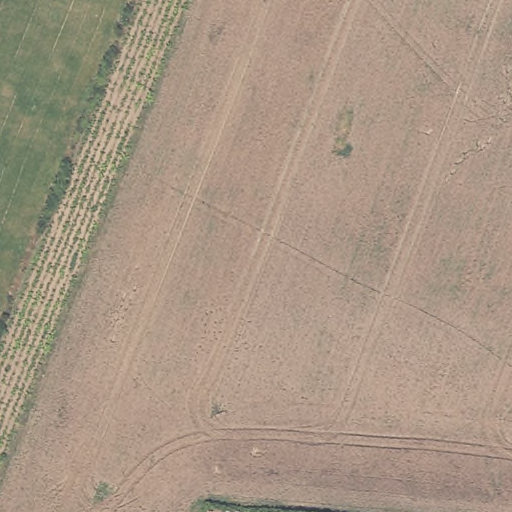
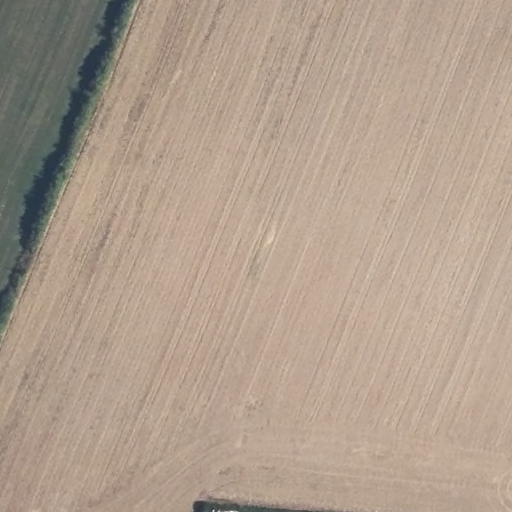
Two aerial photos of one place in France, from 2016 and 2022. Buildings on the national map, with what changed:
[]

